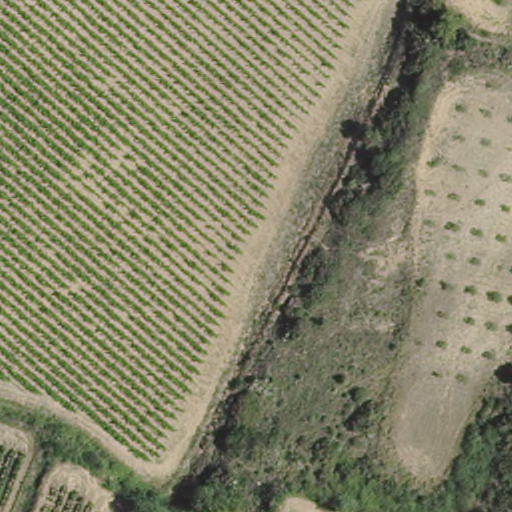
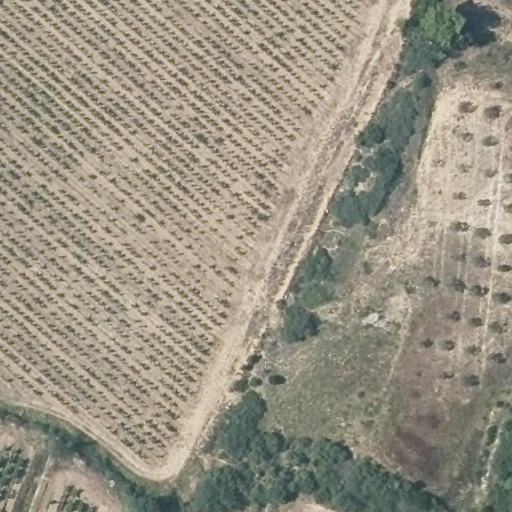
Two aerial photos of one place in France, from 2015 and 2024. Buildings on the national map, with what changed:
[]

